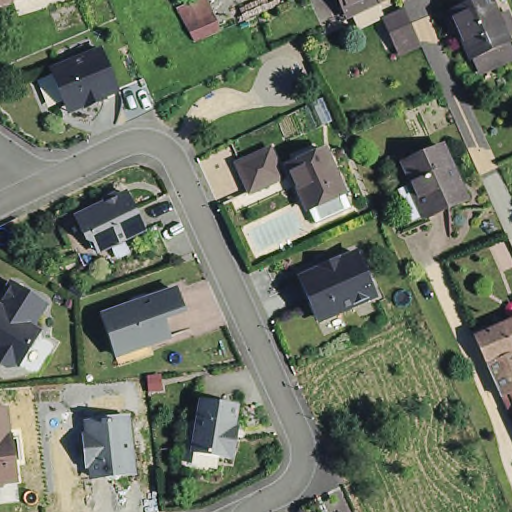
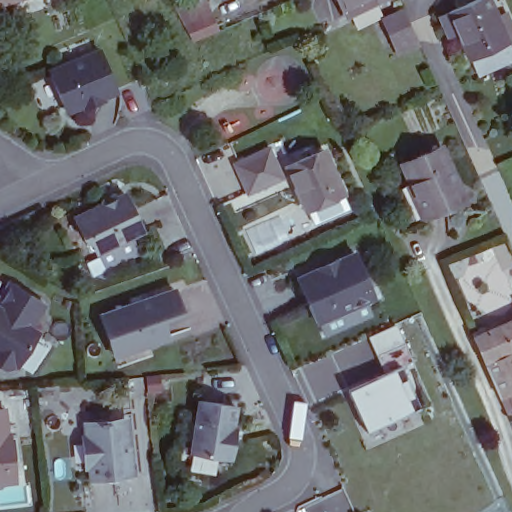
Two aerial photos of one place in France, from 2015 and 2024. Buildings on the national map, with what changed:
unchanged [(25,11),(22,0),(59,0),(25,11)]
unchanged [(348,20),(339,0),(388,0),(348,20)]
unchanged [(480,76),(474,62),(471,57),(452,15),(485,0),(489,0),(499,22),(508,19),(512,29),(512,37),(507,40),(510,47),(512,54),(512,62),(480,76)]
unchanged [(194,45),(182,10),(208,2),(220,35),(194,45)]
unchanged [(405,10),(420,41),(402,50),(389,17),(405,10)]
unchanged [(102,55),(119,96),(105,102),(105,105),(87,112),(85,109),(70,116),(52,75),(102,55)]
unchanged [(272,147),(285,174),(252,188),(240,161),(272,147)]
unchanged [(332,212),(325,199),(310,205),(290,162),(324,147),(344,190),(350,204),(332,212)]
unchanged [(449,150),(472,203),(434,220),(425,201),(429,199),(422,187),(419,189),(410,168),(449,150)]
unchanged [(127,189),(145,226),(100,249),(91,229),(85,227),(78,214),(127,189)]
unchanged [(318,271),(317,270),(335,262),(335,263),(354,255),(373,297),(319,322),(311,304),(308,306),(297,281),(318,271)]
unchanged [(18,280),(51,301),(37,324),(44,327),(24,361),(20,359),(18,362),(10,363),(2,358),(0,347),(0,301),(4,303),(18,280)]
unchanged [(132,352),(128,346),(117,342),(112,343),(104,317),(154,298),(170,341),(132,352)]
unchanged [(510,414),(502,396),(475,335),(512,319),(512,372),(512,373),(512,413),(510,414)]
new [(378,354),(379,353),(371,337),(395,325),(398,331),(404,342),(405,342),(414,360),(402,365),(420,406),(368,430),(350,391),(387,373),(378,354)]
unchanged [(242,431),(239,451),(234,452),(234,453),(200,448),(208,396),(242,402),(240,423),(244,424),(242,431)]
unchanged [(0,410),(10,410),(17,492),(0,492),(0,410)]
unchanged [(102,428),(102,426),(111,425),(112,427),(127,426),(132,478),(94,482),(92,465),(87,465),(85,447),(89,446),(88,430),(102,428)]

